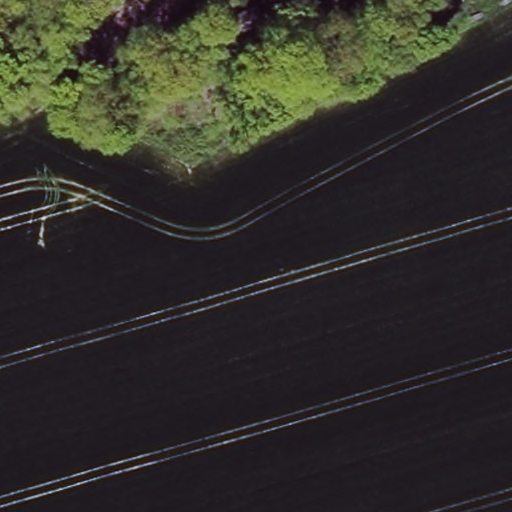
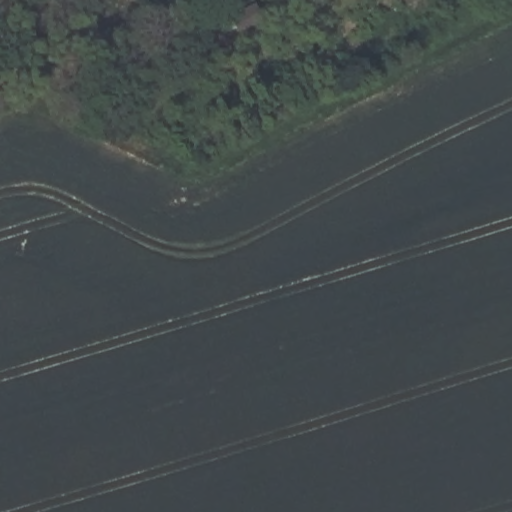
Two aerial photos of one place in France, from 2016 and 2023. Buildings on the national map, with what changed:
unchanged [(265,15),(259,2),(264,0),(284,0),(287,5),(265,15)]

